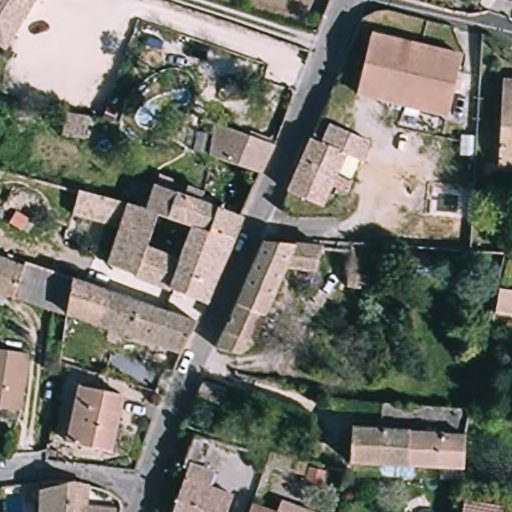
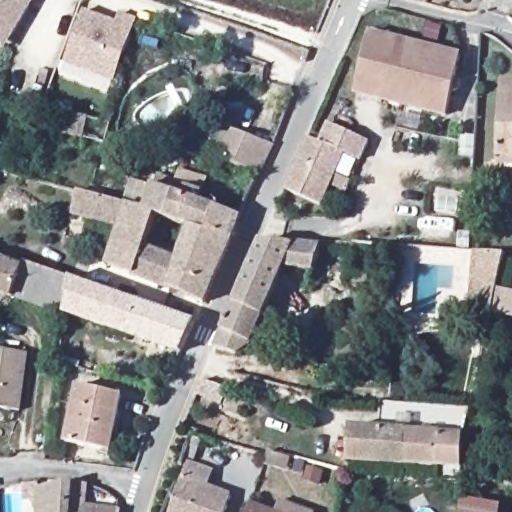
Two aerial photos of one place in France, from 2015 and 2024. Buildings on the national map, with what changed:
unchanged [(0,0),(31,0),(18,29),(11,43),(0,38),(0,0)]
new [(116,22),(120,13),(138,20),(114,83),(64,65),(83,10),(116,22)]
unchanged [(462,53),(450,111),(364,93),(378,35),(462,53)]
unchanged [(499,164),(501,150),(506,74),(512,74),(512,165),(499,164)]
unchanged [(51,101),(93,112),(86,140),(44,130),(51,101)]
unchanged [(289,190),(313,138),(324,143),(333,125),(371,142),(363,161),(346,153),(323,206),(289,190)]
unchanged [(214,158),(224,127),(271,145),(257,173),(214,158)]
unchanged [(194,222),(191,228),(159,214),(146,209),(158,172),(198,187),(196,197),(238,212),(228,236),(194,222)]
unchanged [(131,203),(119,228),(69,215),(77,189),(131,203)]
unchanged [(106,261),(119,228),(131,203),(146,209),(159,214),(146,248),(178,260),(191,228),(194,222),(228,236),(201,299),(106,261)]
unchanged [(264,243),(323,243),(319,269),(288,268),(255,342),(236,355),(218,351),(264,243)]
unchanged [(22,261),(68,277),(63,313),(0,291),(0,259),(20,266),(22,261)]
unchanged [(332,271),(371,274),(393,275),(392,288),(331,284),(332,271)]
unchanged [(63,313),(68,277),(193,321),(181,352),(63,313)]
unchanged [(512,292),(512,320),(496,318),(498,291),(512,292)]
unchanged [(18,412),(0,408),(0,349),(28,356),(18,412)]
unchanged [(120,392),(113,450),(68,443),(78,386),(120,392)]
unchanged [(472,411),(468,432),(466,468),(355,466),(356,433),(381,433),(379,404),(472,411)]
unchanged [(214,470),(209,485),(231,493),(225,512),(172,512),(189,462),(214,470)]
unchanged [(94,487),(92,506),(125,509),(125,512),(44,512),(44,496),(31,498),(30,483),(42,481),(44,491),(76,482),(79,483),(94,487)]
unchanged [(501,512),(463,512),(466,500),(503,504),(501,512)]
unchanged [(281,512),(252,512),(256,503),(281,512)]

